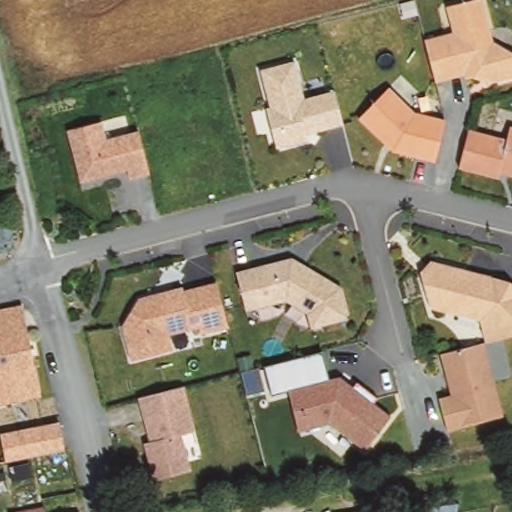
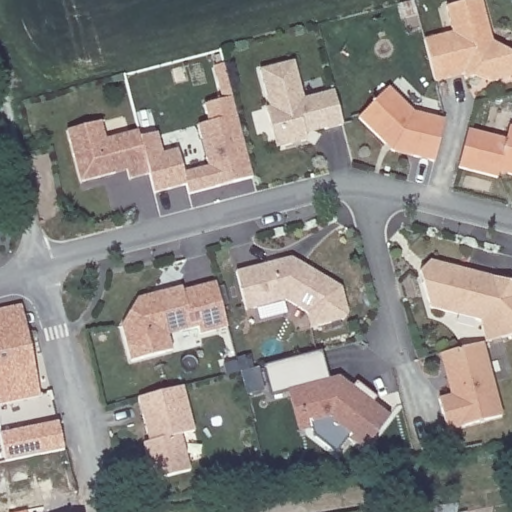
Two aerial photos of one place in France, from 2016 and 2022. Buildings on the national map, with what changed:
unchanged [(465,78),(435,85),(425,41),(453,35),(446,9),(482,1),(491,41),(512,54),(512,79),(489,85),(465,78)]
unchanged [(296,61),(306,97),(336,90),(344,126),(306,136),(307,143),(276,149),(265,108),(269,106),(260,69),(296,61)]
new [(139,138),(158,133),(163,153),(179,149),(185,173),(207,166),(197,125),(210,121),(204,105),(223,99),(214,68),(225,64),(254,176),(189,194),(186,184),(155,192),(151,177),(139,138)]
unchanged [(433,164),(396,156),(359,122),(389,90),(413,114),(444,123),(433,164)]
unchanged [(126,174),(82,187),(67,133),(101,124),(106,142),(137,134),(151,177),(129,183),(126,174)]
unchanged [(512,176),(504,174),(503,180),(459,171),(467,131),(507,139),(509,128),(512,129),(512,176)]
unchanged [(290,261),(340,290),(347,320),(310,329),(308,318),(307,314),(282,302),(244,311),(234,275),(290,261)]
unchanged [(432,312),(421,275),(431,263),(512,285),(512,338),(486,344),(481,322),(432,312)]
unchanged [(182,293),(215,286),(226,331),(202,335),(201,332),(189,334),(169,340),(172,352),(130,364),(121,331),(138,301),(182,289),(182,293)]
unchanged [(24,304),(35,363),(41,396),(0,403),(0,309),(24,304)]
unchanged [(485,346),(504,420),(447,433),(438,399),(451,396),(441,355),(485,346)]
unchanged [(271,395),(263,368),(321,353),(329,379),(339,376),(353,388),(357,383),(377,399),(374,404),(391,418),(364,452),(328,425),(298,431),(288,391),(271,395)]
unchanged [(182,437),(193,474),(153,483),(143,444),(149,443),(138,399),(183,388),(194,432),(182,437)]
unchanged [(65,452),(7,464),(1,436),(61,426),(65,452)]
unchanged [(68,490),(71,504),(52,507),(49,494),(68,490)]
unchanged [(45,504),(47,512),(13,512),(13,511),(45,504)]

